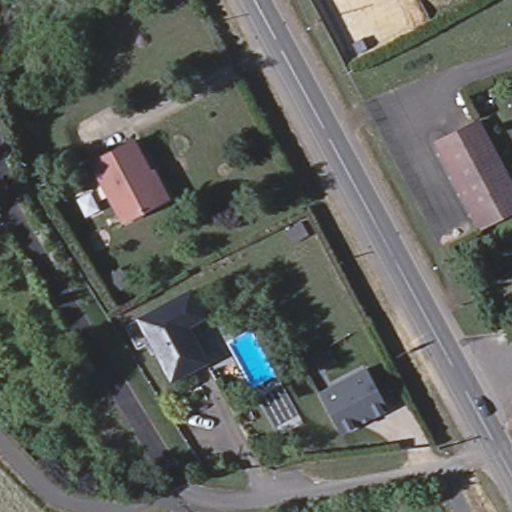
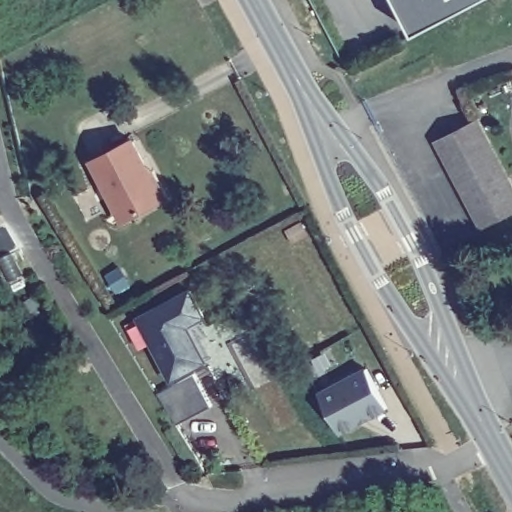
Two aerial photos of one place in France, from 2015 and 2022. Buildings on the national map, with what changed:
new [(397,0),(478,0),(415,34),(397,0)]
unchanged [(512,187),(512,209),(482,226),(437,144),(477,122),(512,187)]
unchanged [(169,200),(161,205),(124,223),(93,164),(134,142),(151,175),(156,172),(169,200)]
unchanged [(144,322),(178,304),(209,364),(175,382),(144,322)]
unchanged [(366,367),(389,410),(341,435),(317,395),(366,367)]

